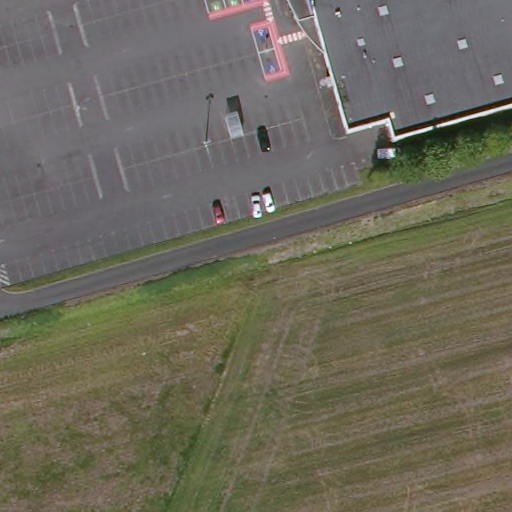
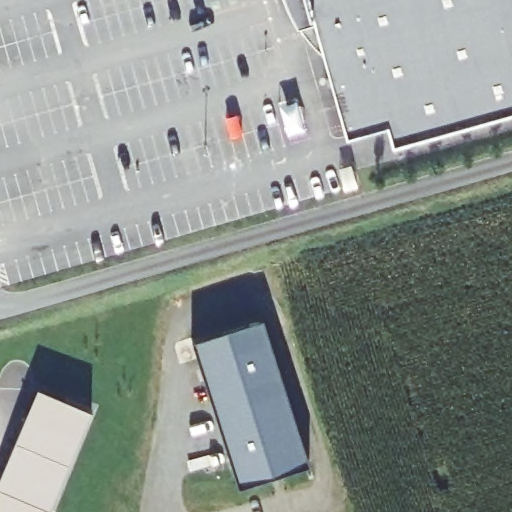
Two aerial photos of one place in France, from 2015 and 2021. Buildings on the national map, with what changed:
unchanged [(363,135),(323,147),(287,24),(272,28),(264,0),(512,0),(512,114),(369,155),(363,135)]
new [(309,461),(238,484),(193,340),(263,316),(309,461)]
new [(31,413),(38,393),(62,403),(64,397),(94,409),(51,512),(0,512),(0,472),(26,410),(31,413)]

